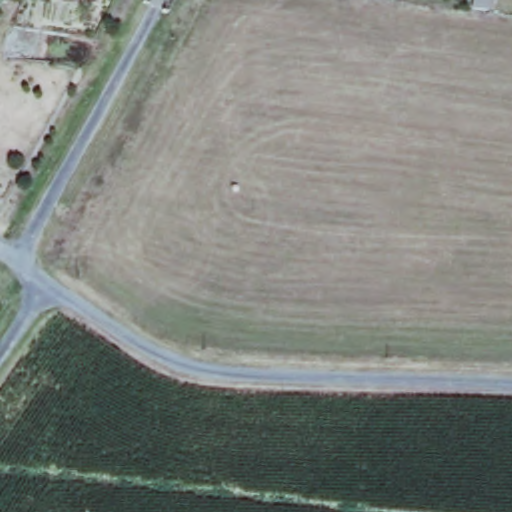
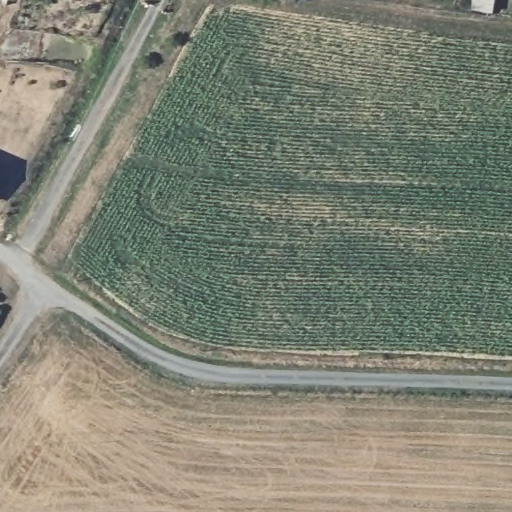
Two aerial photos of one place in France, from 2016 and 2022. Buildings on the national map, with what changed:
unchanged [(492,15),(470,12),(471,0),(494,0),(492,15)]

